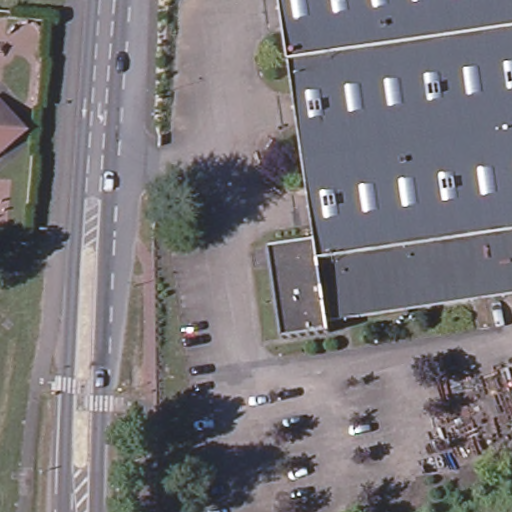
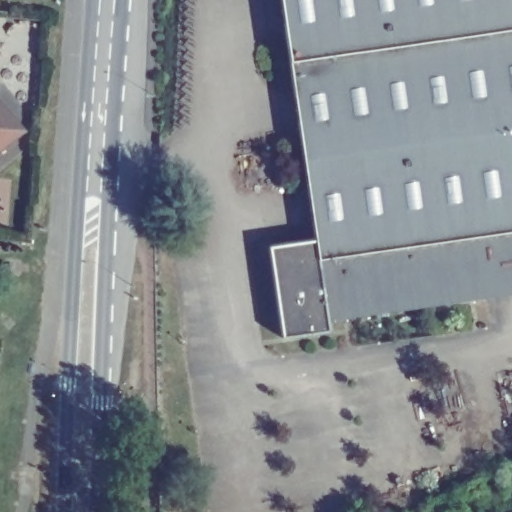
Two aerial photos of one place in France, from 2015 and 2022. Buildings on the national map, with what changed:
unchanged [(327,324),(329,335),(279,342),(265,249),(314,242),(281,0),(512,0),(512,299),(327,324)]
unchanged [(19,133),(0,148),(0,103),(20,125),(19,133)]

